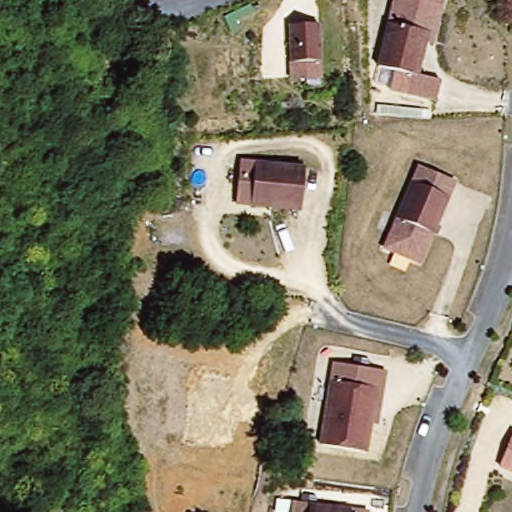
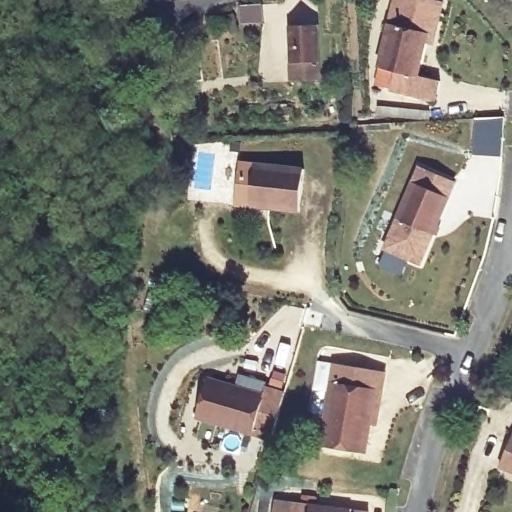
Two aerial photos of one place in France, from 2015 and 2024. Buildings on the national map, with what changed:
unchanged [(393,0),(423,0),(441,4),(433,38),(426,36),(415,78),(439,84),(434,104),(388,92),(393,73),(377,69),(380,54),(393,0)]
unchanged [(292,61),(291,24),(321,23),(323,77),(308,78),(293,78),(292,61)]
unchanged [(387,246),(422,164),(458,179),(423,262),(387,246)]
unchanged [(238,165),(303,173),(298,215),(233,208),(238,165)]
unchanged [(127,351),(123,353),(120,352),(117,349),(118,344),(121,340),(125,340),(129,343),(130,347),(127,351)]
unchanged [(323,445),(337,366),(388,374),(385,391),(380,424),(374,424),(370,453),(323,445)]
new [(195,419),(207,376),(263,391),(265,384),(285,391),(271,441),(195,419)]
unchanged [(500,459),(512,432),(512,464),(500,459)]
unchanged [(295,501),(372,511),(371,512),(294,512),(295,501)]

